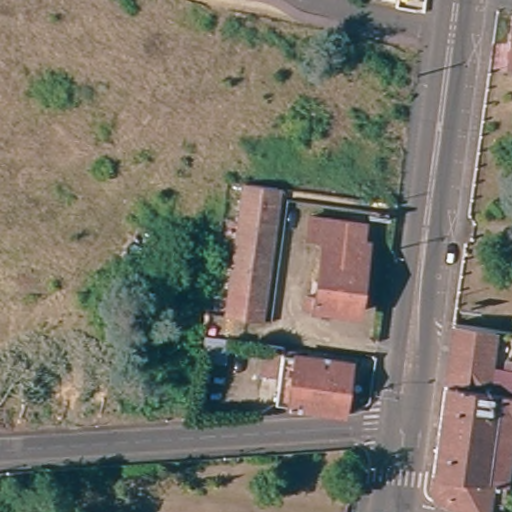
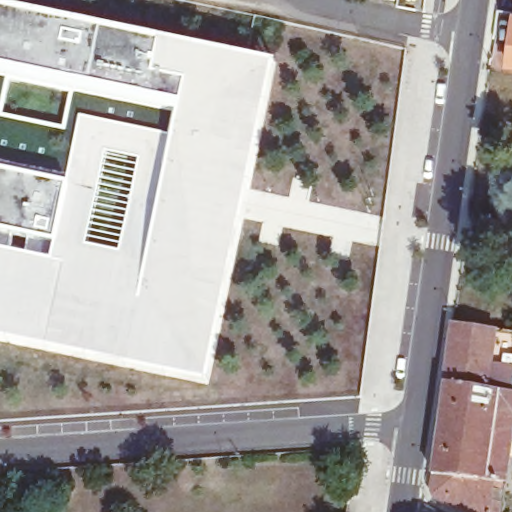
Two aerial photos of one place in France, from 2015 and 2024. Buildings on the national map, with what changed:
new [(0,340),(0,172),(69,186),(82,118),(175,130),(179,113),(0,75),(0,6),(274,64),(207,383),(0,340)]
unchanged [(506,36),(511,37),(512,28),(512,60),(503,59),(506,36)]
demolished [(283,188),(264,319),(232,315),(254,183),(283,188)]
demolished [(361,222),(360,239),(365,242),(355,311),(310,303),(321,234),(305,232),(308,214),(361,222)]
unchanged [(512,387),(447,378),(455,318),(512,327),(512,387)]
demolished [(289,344),(287,351),(353,359),(346,408),(279,398),(282,373),(264,371),(267,341),(289,344)]
unchanged [(512,426),(511,435),(512,436),(512,462),(509,462),(507,477),(434,470),(440,428),(447,378),(512,387),(512,426)]
unchanged [(505,496),(503,512),(473,512),(451,500),(436,492),(434,487),(432,483),(434,470),(507,477),(506,484),(505,496)]

